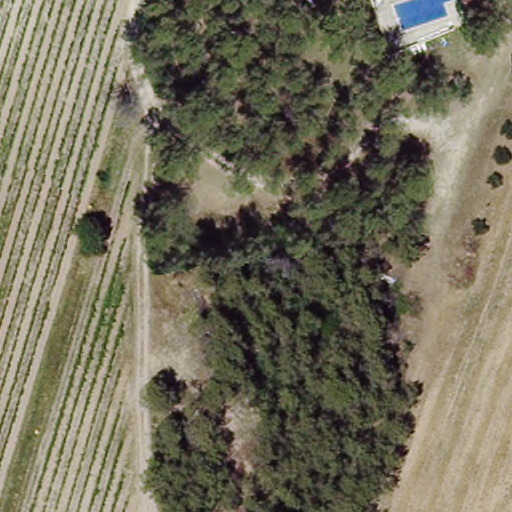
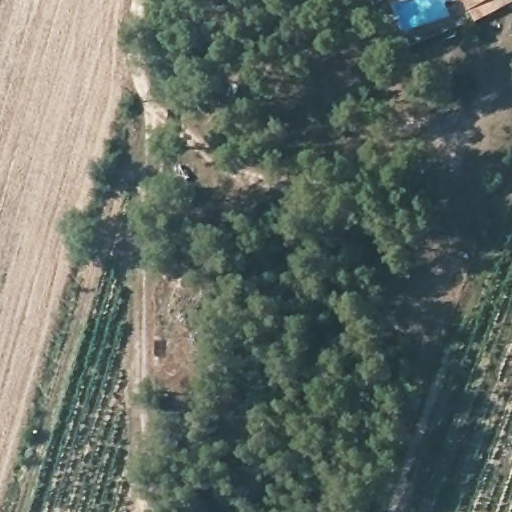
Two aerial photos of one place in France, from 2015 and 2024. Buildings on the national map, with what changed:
unchanged [(468,0),(490,0),(471,11),(468,0)]

